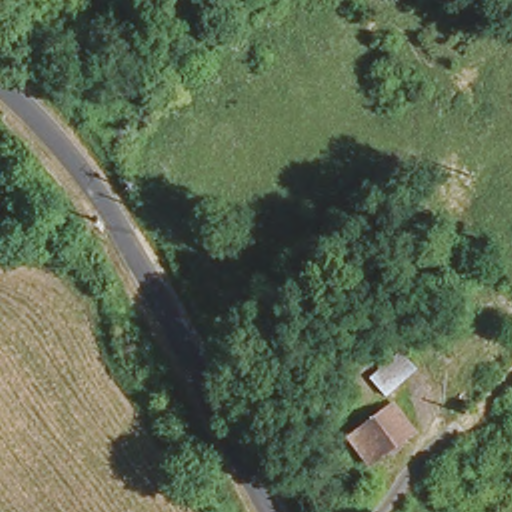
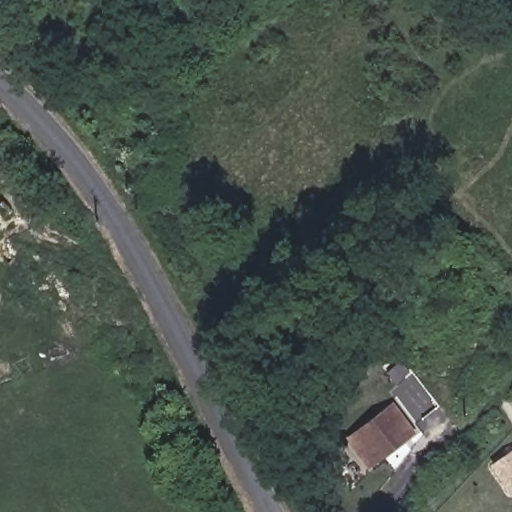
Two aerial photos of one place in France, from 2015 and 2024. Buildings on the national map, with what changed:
unchanged [(0,176),(1,177),(0,178),(0,176)]
unchanged [(0,212),(14,225),(0,239),(0,212)]
unchanged [(367,469),(343,438),(392,402),(415,432),(367,469)]
new [(510,496),(489,465),(512,450),(512,495),(510,496)]

